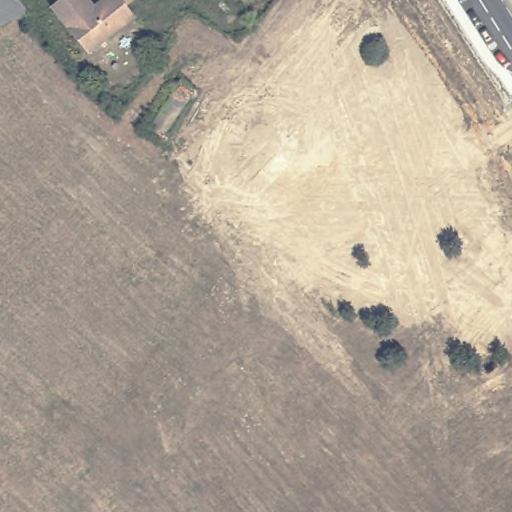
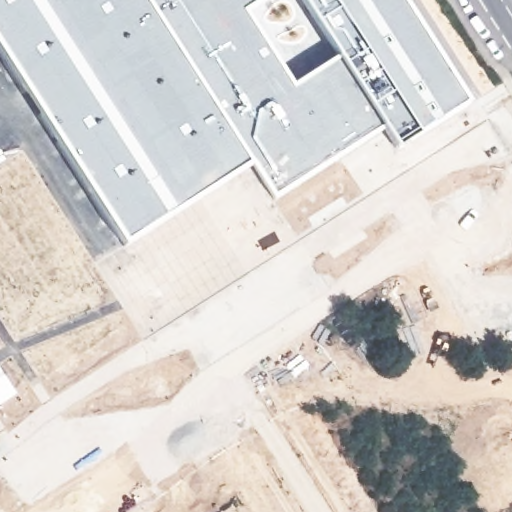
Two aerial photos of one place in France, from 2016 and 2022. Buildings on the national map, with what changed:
demolished [(16,0),(29,15),(0,27),(0,1),(2,0),(16,0)]
new [(397,148),(385,124),(275,204),(248,162),(119,244),(0,59),(0,0),(414,0),(477,97),(397,148)]
demolished [(119,0),(121,3),(126,8),(135,19),(87,56),(50,8),(60,0),(86,0),(93,9),(96,11),(103,6),(100,3),(103,0),(119,0)]
demolished [(121,3),(119,0),(136,0),(126,8),(121,3)]
demolished [(149,123),(179,75),(199,88),(166,135),(149,123)]

